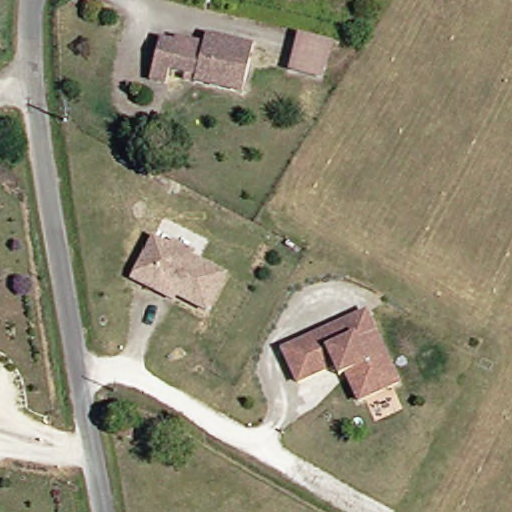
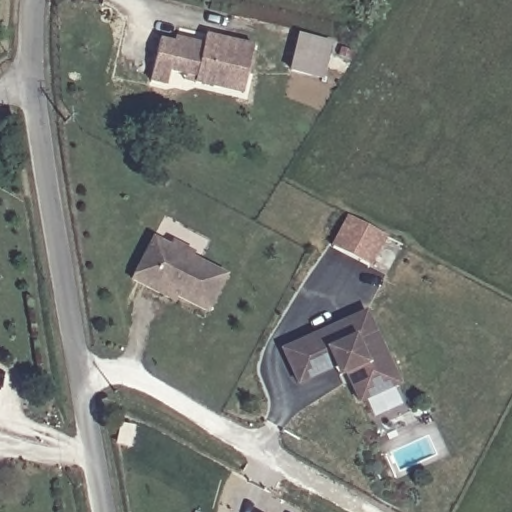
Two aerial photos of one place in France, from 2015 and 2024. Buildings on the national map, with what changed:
unchanged [(246,44),(237,84),(215,78),(213,89),(181,81),(182,76),(162,71),(158,86),(142,82),(152,37),(171,41),(169,50),(191,55),(194,42),(197,32),(246,44)]
unchanged [(323,44),(315,80),(284,73),(293,37),(323,44)]
new [(351,215),(387,233),(371,263),(336,245),(351,215)]
unchanged [(152,290),(136,281),(157,240),(174,249),(176,244),(196,254),(194,259),(228,277),(209,313),(180,297),(177,303),(152,290)]
unchanged [(282,351),(365,315),(397,386),(358,404),(345,375),(338,377),(334,368),(297,385),(282,351)]
unchanged [(134,423),(133,440),(121,438),(122,422),(134,423)]

